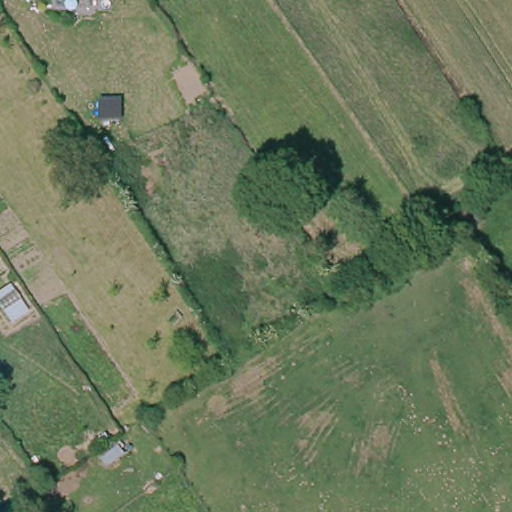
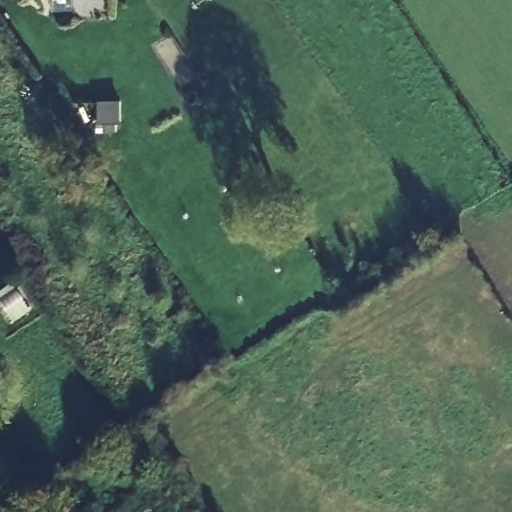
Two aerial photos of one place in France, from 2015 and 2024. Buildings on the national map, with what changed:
[]

